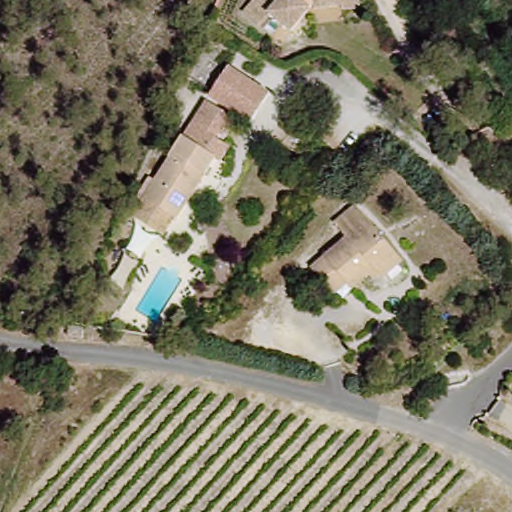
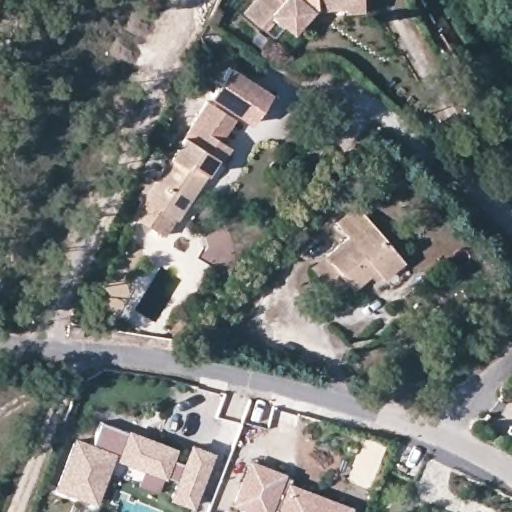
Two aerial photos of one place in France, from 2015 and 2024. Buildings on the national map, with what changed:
unchanged [(295,20),(286,12),(272,22),(254,7),(259,0),(333,0),(306,6),(295,20)]
unchanged [(340,7),(340,0),(361,0),(362,3),(340,7)]
unchanged [(238,69),(275,97),(256,124),(217,96),(238,69)]
unchanged [(133,212),(142,200),(183,137),(195,145),(203,131),(231,147),(220,163),(215,160),(175,221),(167,235),(133,212)]
unchanged [(396,258),(380,272),(372,263),(350,282),(345,276),(329,287),(312,263),(366,220),(396,258)]
unchanged [(150,270),(135,298),(115,287),(132,258),(150,270)]
new [(213,452),(193,507),(168,500),(176,481),(163,477),(159,491),(138,484),(143,471),(116,462),(118,457),(114,455),(97,504),(55,488),(73,437),(92,443),(101,421),(177,447),(173,460),(182,462),(190,443),(213,452)]
new [(354,499),(349,512),(244,512),(246,507),(235,502),(250,462),(354,499)]

